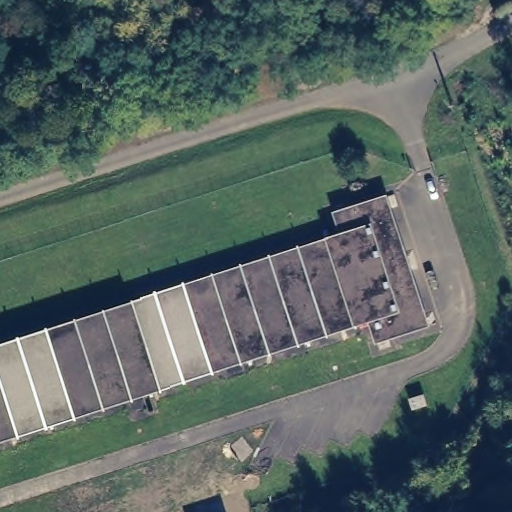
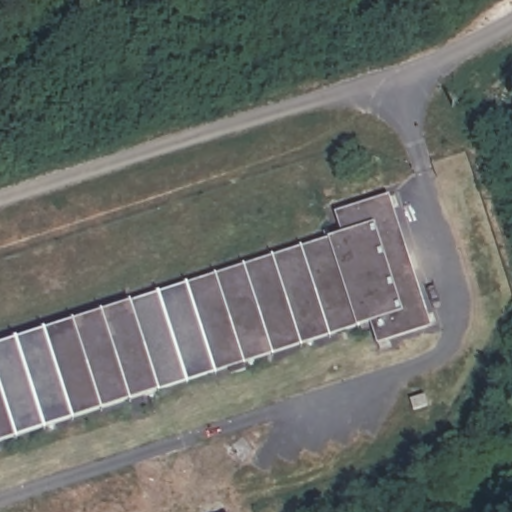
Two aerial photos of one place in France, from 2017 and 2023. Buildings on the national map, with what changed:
unchanged [(324,216),(379,200),(429,334),(370,354),(361,330),(0,446),(0,348),(337,244),(324,216)]

